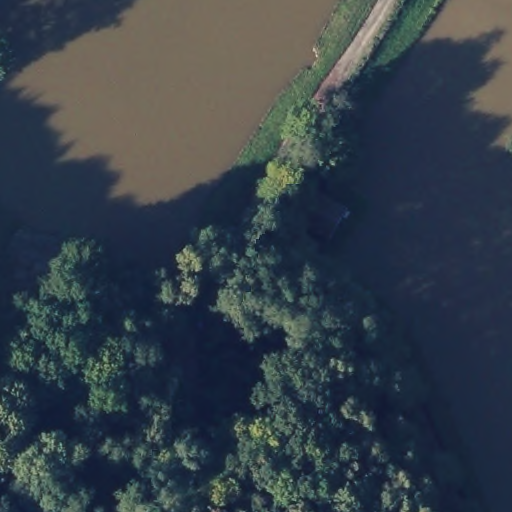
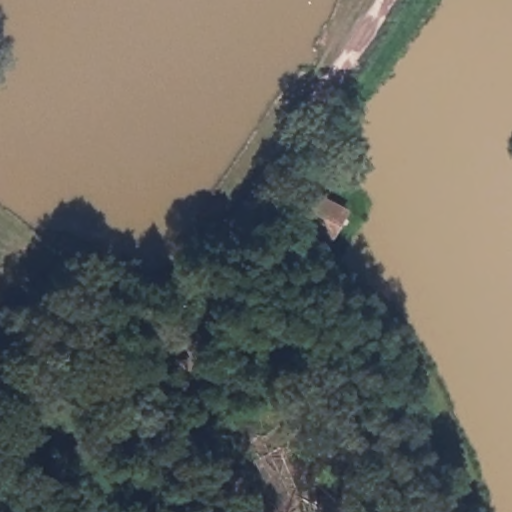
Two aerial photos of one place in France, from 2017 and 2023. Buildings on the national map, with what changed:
unchanged [(320,188),(340,200),(326,225),(305,212),(320,188)]

